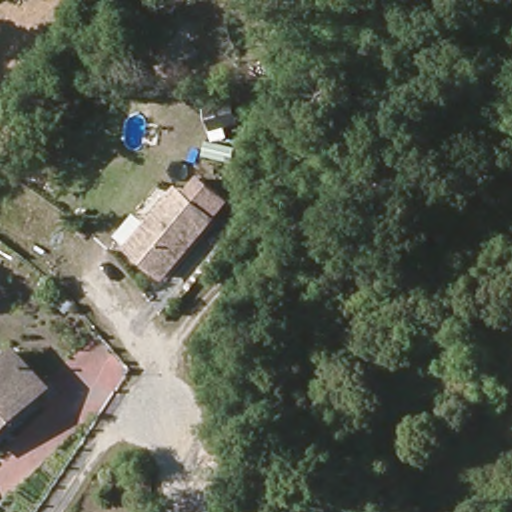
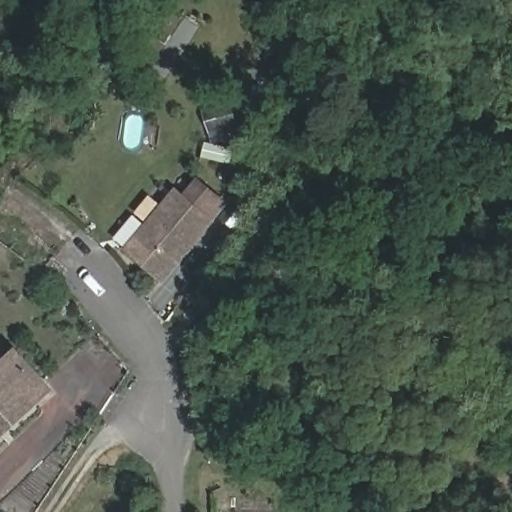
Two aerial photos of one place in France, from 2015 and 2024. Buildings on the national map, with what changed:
unchanged [(198,177),(229,202),(215,220),(184,195),(198,177)]
unchanged [(211,219),(166,277),(130,250),(175,192),(211,219)]
unchanged [(0,432),(0,370),(14,355),(46,385),(0,432)]
unchanged [(0,444),(0,435),(4,440),(0,444)]

